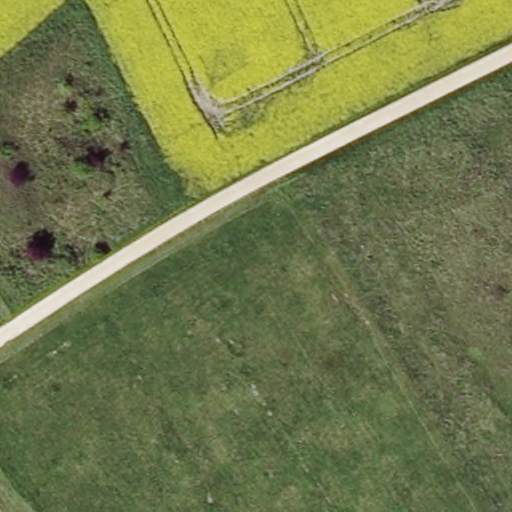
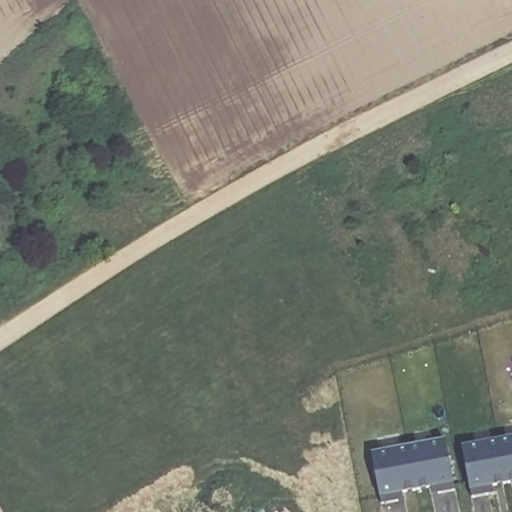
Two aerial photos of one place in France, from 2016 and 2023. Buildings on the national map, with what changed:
new [(512,434),(512,477),(482,483),(484,490),(470,493),(461,444),(512,434)]
new [(444,437),(452,486),(436,489),(435,482),(395,489),(397,497),(379,499),(370,451),(444,437)]

